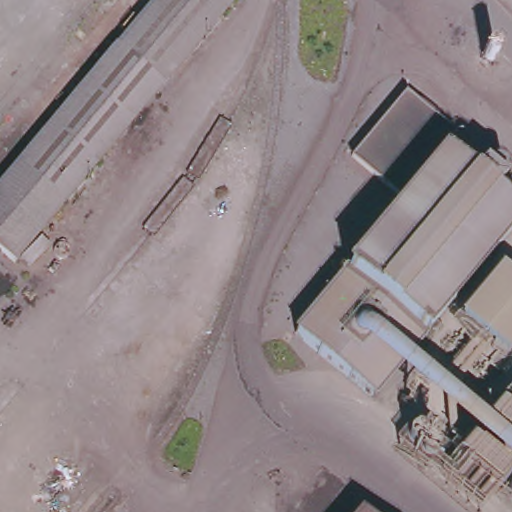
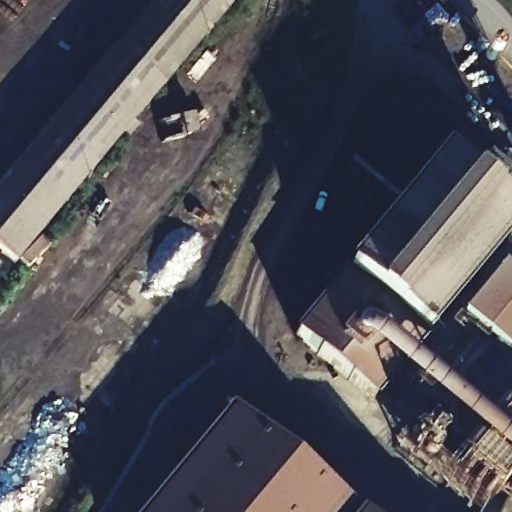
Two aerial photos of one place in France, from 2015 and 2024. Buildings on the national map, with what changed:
unchanged [(164,0),(241,0),(14,262),(0,250),(0,187),(164,0)]
unchanged [(428,341),(374,405),(287,334),(345,274),(402,200),(351,159),(405,97),(456,136),(442,160),(512,216),(512,241),(428,341)]
new [(506,363),(458,323),(499,273),(512,285),(512,355),(506,363)]
new [(146,512),(229,415),(356,512),(146,512)]

